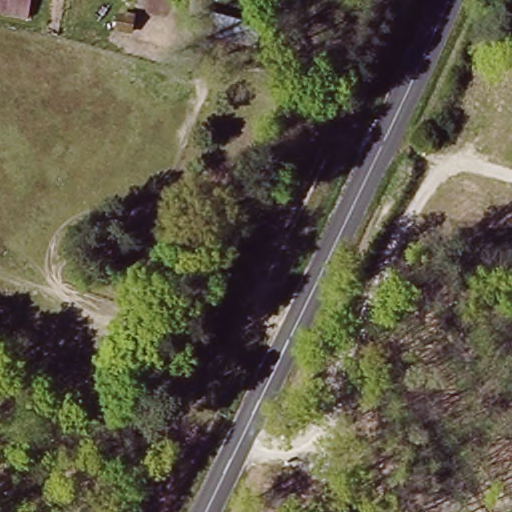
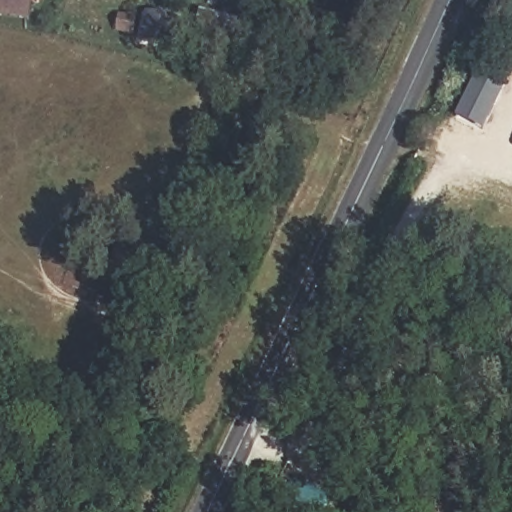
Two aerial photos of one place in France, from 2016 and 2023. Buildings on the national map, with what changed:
unchanged [(0,14),(0,0),(31,0),(28,19),(0,14)]
new [(483,131),(454,116),(474,71),(505,85),(483,131)]

